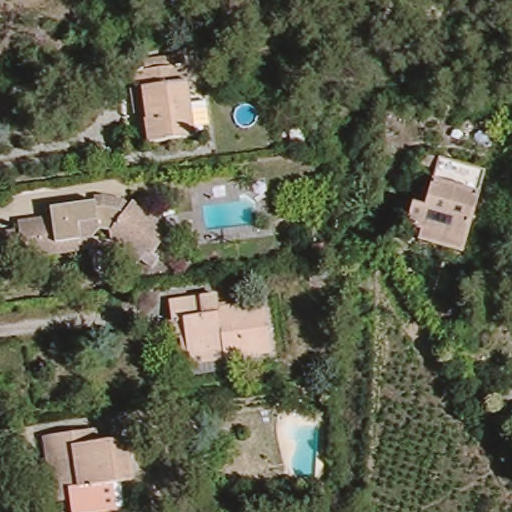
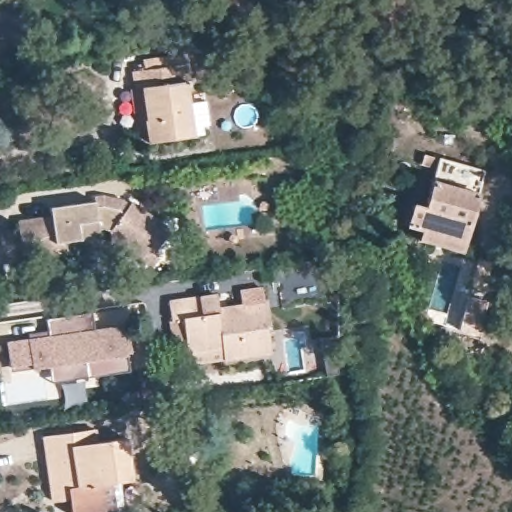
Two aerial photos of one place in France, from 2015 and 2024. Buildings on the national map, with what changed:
unchanged [(136,75),(185,69),(195,141),(152,146),(142,148),(134,93),(139,92),(136,75)]
unchanged [(411,231),(416,211),(431,214),(441,175),(425,171),(427,160),(444,164),(488,176),(470,246),(467,257),(425,246),(427,235),(411,231)]
unchanged [(39,250),(35,223),(51,221),(50,211),(93,205),(108,203),(123,211),(126,208),(165,232),(151,257),(156,261),(150,271),(139,265),(134,266),(123,260),(108,250),(106,240),(105,238),(96,235),(90,242),(39,250)]
unchanged [(19,225),(35,223),(39,250),(90,242),(96,235),(105,238),(108,250),(123,260),(118,269),(94,254),(25,262),(19,225)]
unchanged [(196,375),(193,353),(189,319),(177,320),(174,300),(221,294),(222,308),(266,303),(273,352),(229,359),(230,370),(196,375)]
new [(49,336),(47,318),(93,312),(95,328),(126,324),(132,355),(124,356),(126,372),(51,382),(49,366),(11,370),(6,341),(49,336)]
new [(159,400),(144,402),(140,380),(156,378),(159,400)]
unchanged [(504,403),(512,416),(512,424),(508,426),(488,398),(512,383),(512,398),(504,403)]
unchanged [(89,512),(81,512),(79,496),(65,498),(61,478),(66,477),(60,434),(103,428),(104,441),(133,437),(140,479),(119,482),(122,508),(113,509),(89,512)]
unchanged [(331,493),(320,493),(320,481),(332,481),(331,493)]

